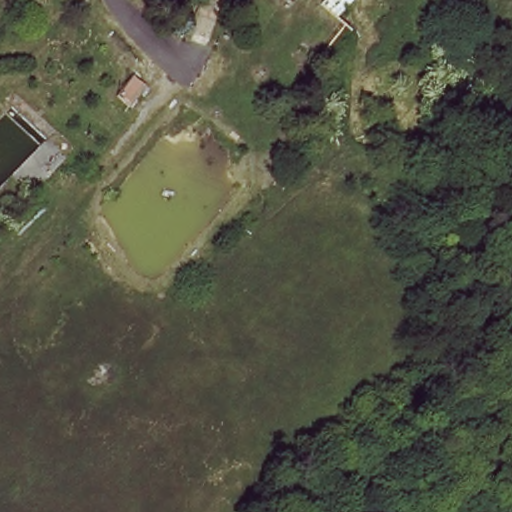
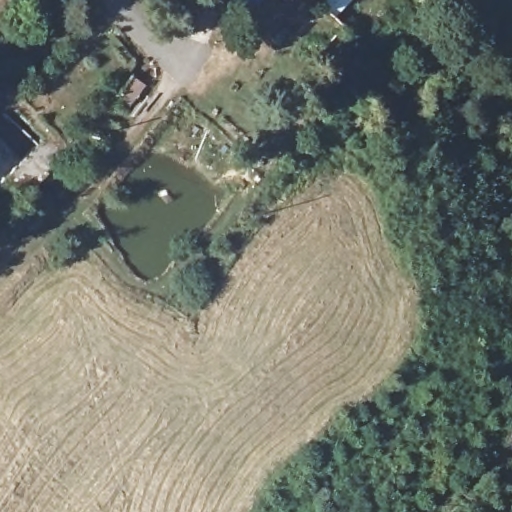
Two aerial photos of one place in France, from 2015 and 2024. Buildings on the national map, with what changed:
unchanged [(279,0),(288,0),(284,4),(279,0)]
unchanged [(132,113),(109,92),(125,68),(145,87),(132,113)]

